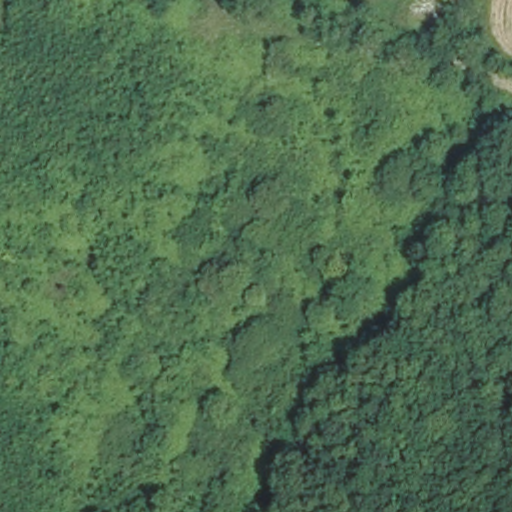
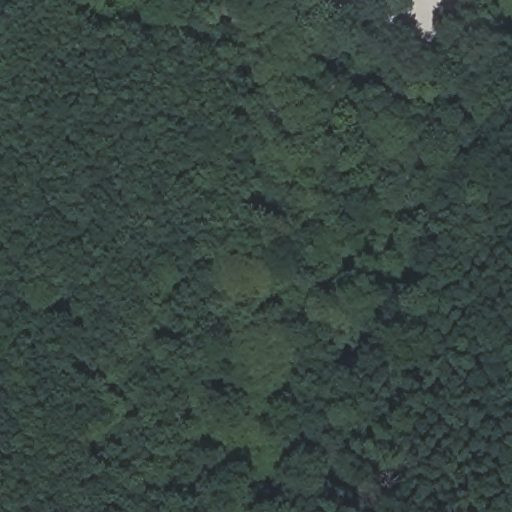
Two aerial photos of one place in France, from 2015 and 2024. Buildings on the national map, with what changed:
unchanged [(435,56),(423,51),(427,41),(438,45),(435,56)]

